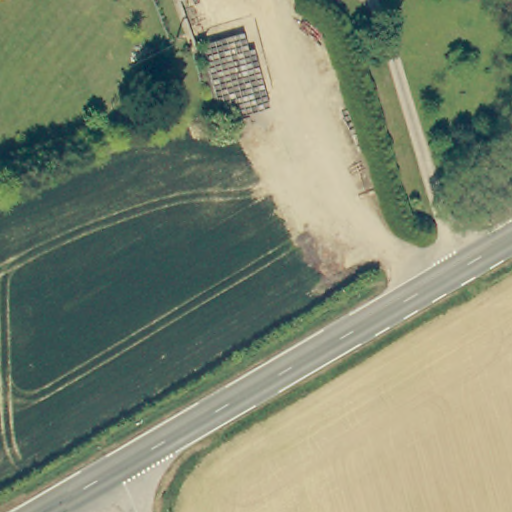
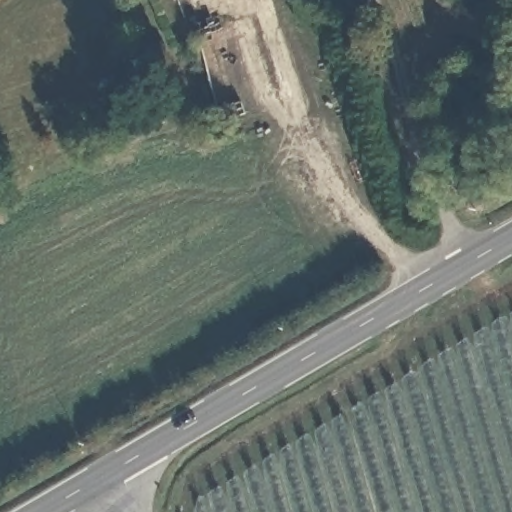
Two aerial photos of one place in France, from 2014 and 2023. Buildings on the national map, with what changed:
[]

